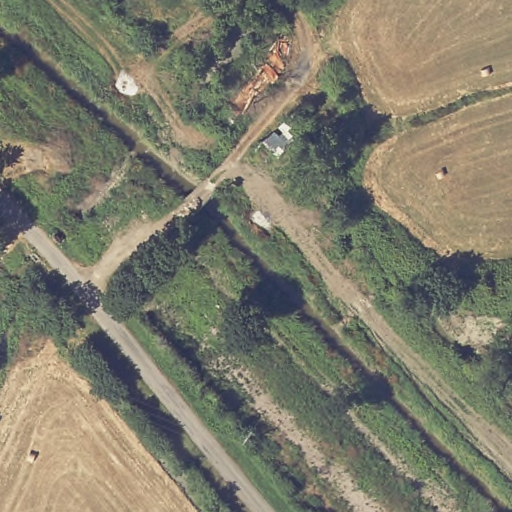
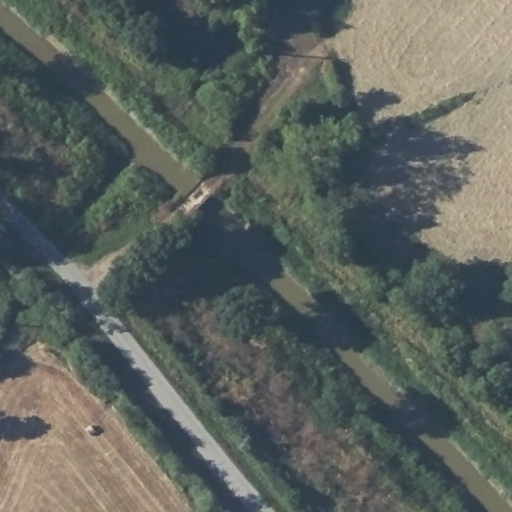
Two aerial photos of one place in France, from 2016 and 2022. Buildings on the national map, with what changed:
unchanged [(303,59),(251,118),(235,99),(283,41),(303,59)]

